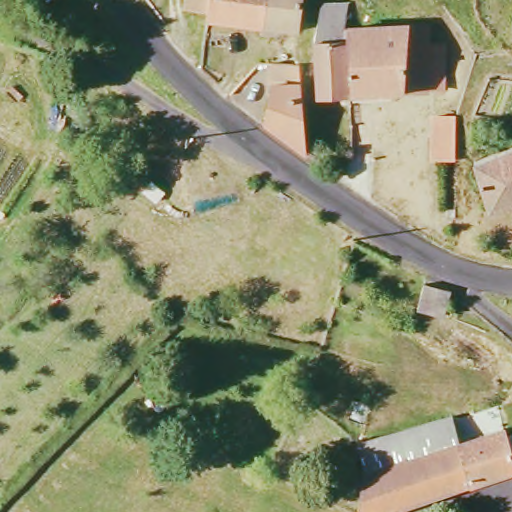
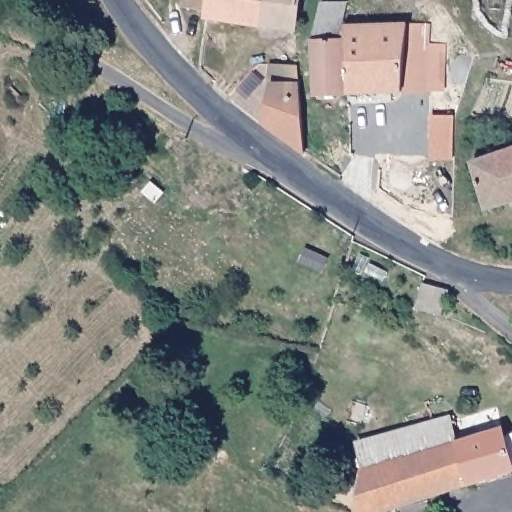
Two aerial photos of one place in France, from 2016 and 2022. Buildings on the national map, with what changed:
unchanged [(184,7),(185,0),(208,0),(207,11),(184,7)]
unchanged [(206,20),(207,11),(208,0),(300,0),(296,32),(206,20)]
unchanged [(338,24),(337,94),(310,94),(308,35),(318,3),(342,1),(338,24)]
unchanged [(417,23),(416,44),(432,44),(433,89),(415,89),(414,91),(341,94),(342,24),(417,23)]
unchanged [(265,126),(273,88),(270,82),(271,65),(302,70),(304,157),(265,126)]
unchanged [(457,160),(433,160),(431,120),(453,119),(457,160)]
unchanged [(490,210),(472,163),(512,149),(512,204),(490,210)]
unchanged [(445,312),(418,306),(422,283),(448,291),(445,312)]
unchanged [(446,415),(454,438),(502,425),(506,433),(512,429),(512,473),(395,508),(384,512),(356,512),(364,466),(357,442),(446,415)]

